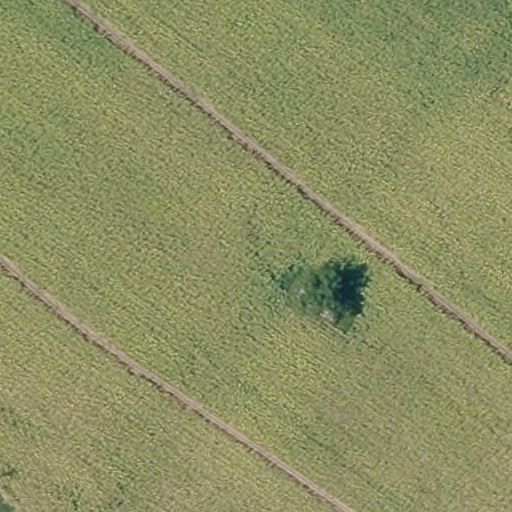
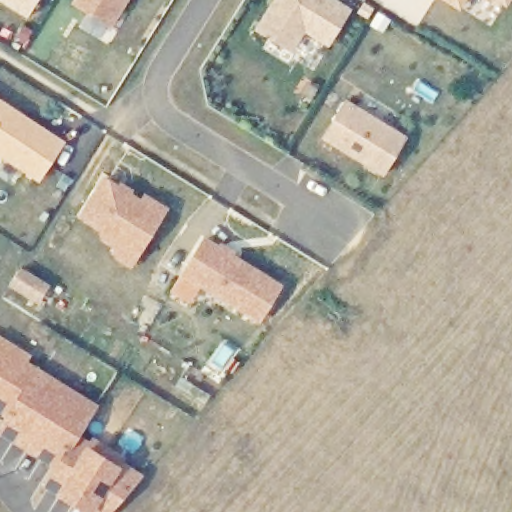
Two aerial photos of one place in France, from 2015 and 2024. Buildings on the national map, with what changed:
new [(37,0),(27,17),(0,1),(0,0),(37,0)]
new [(72,2),(73,0),(127,0),(111,25),(72,2)]
new [(271,0),(339,0),(352,8),(327,47),(304,33),(292,52),(254,27),(271,0)]
new [(445,0),(467,0),(461,11),(445,0)]
new [(495,0),(510,0),(506,7),(495,0)]
new [(0,156),(0,98),(67,140),(39,183),(0,156)]
new [(321,137),(345,98),(407,137),(383,177),(321,137)]
new [(116,262),(112,245),(100,239),(99,227),(78,215),(104,175),(119,184),(121,180),(134,189),(132,192),(141,196),(144,190),(168,206),(131,271),(116,262)]
new [(179,273),(204,234),(282,284),(258,323),(179,273)]
new [(110,512),(89,512),(56,490),(42,485),(52,467),(0,434),(0,424),(5,417),(0,414),(0,332),(33,353),(29,361),(99,403),(78,436),(87,443),(120,465),(123,458),(144,475),(110,512)]

